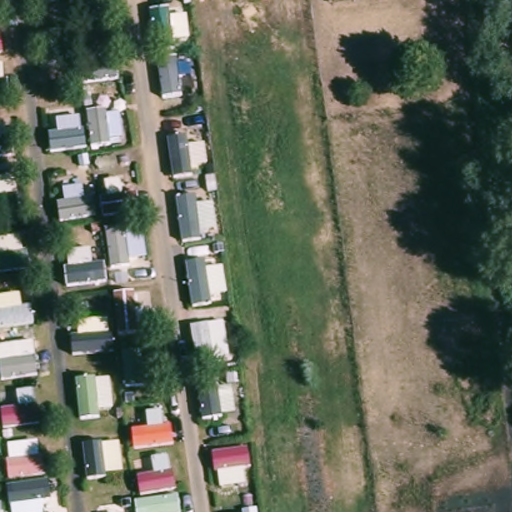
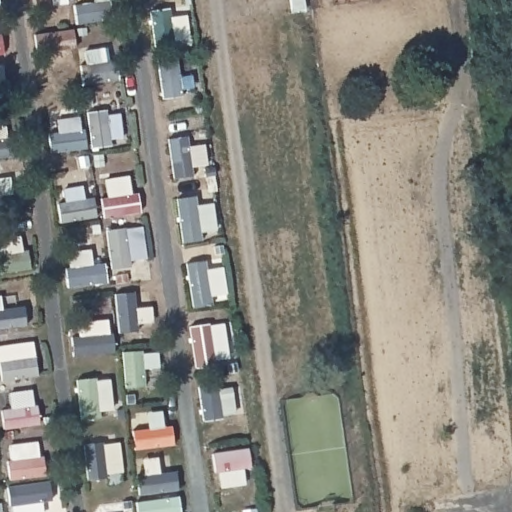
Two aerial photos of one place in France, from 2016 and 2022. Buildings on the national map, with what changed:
[]

